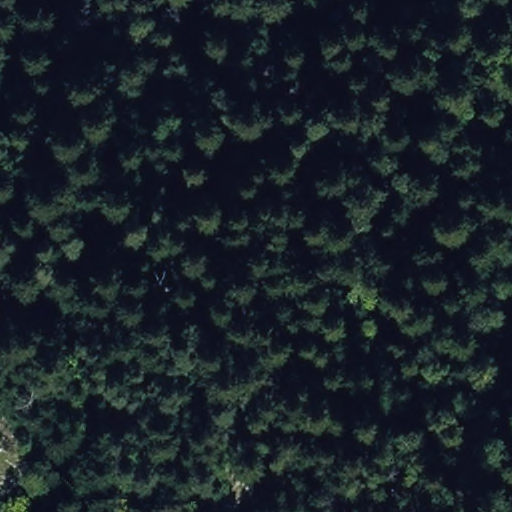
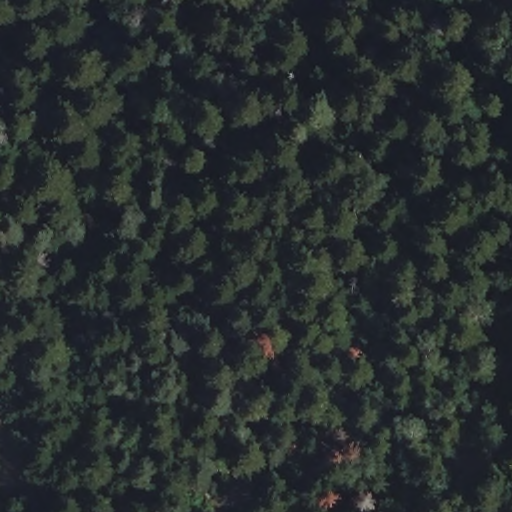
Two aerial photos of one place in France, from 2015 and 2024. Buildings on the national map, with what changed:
[]

